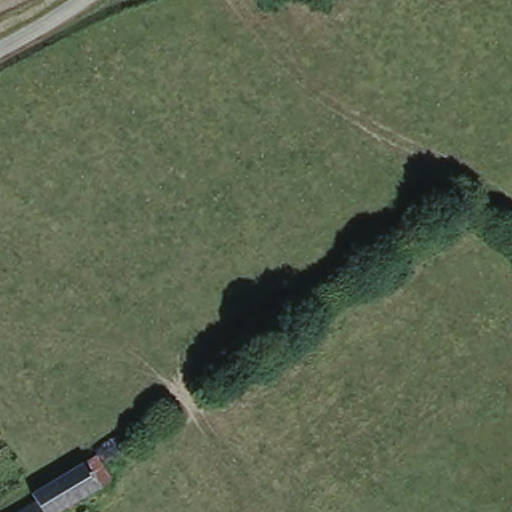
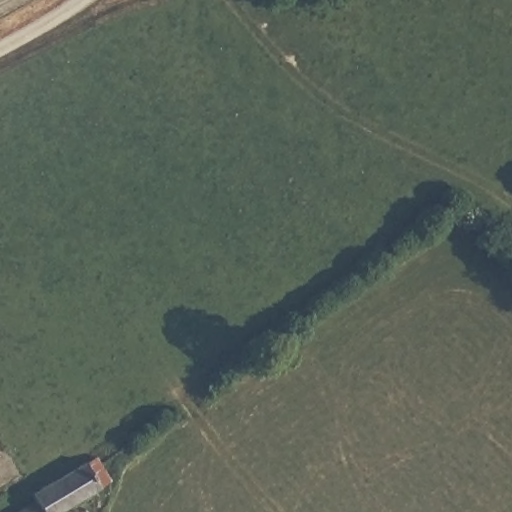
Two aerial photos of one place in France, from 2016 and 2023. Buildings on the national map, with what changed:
unchanged [(67,512),(43,512),(37,503),(35,498),(87,466),(91,471),(102,491),(67,512)]
unchanged [(43,512),(23,512),(37,503),(43,512)]

